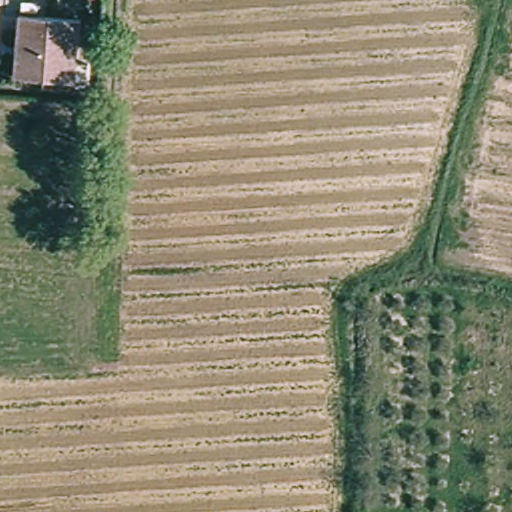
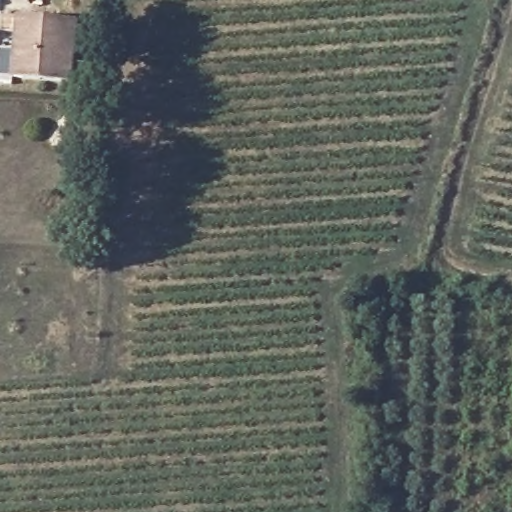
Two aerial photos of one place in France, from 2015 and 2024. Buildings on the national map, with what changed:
unchanged [(77,83),(24,80),(26,36),(20,35),(22,16),(80,21),(77,83)]

